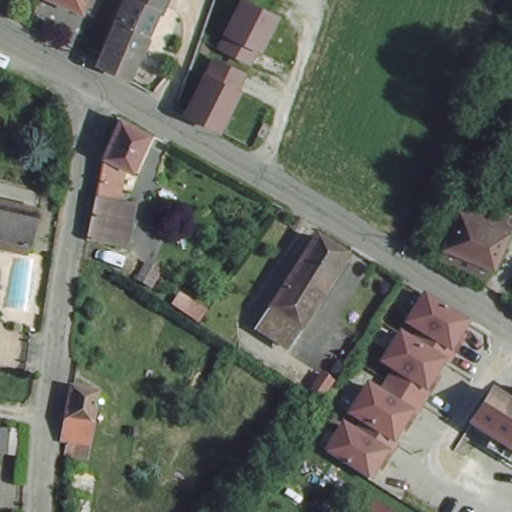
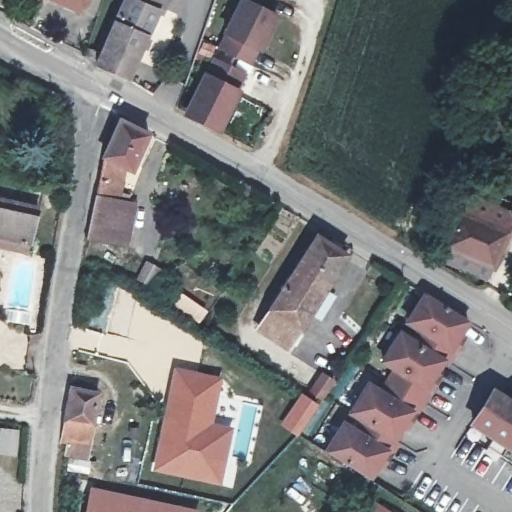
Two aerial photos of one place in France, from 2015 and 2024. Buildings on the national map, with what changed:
unchanged [(82,12),(52,0),(88,0),(82,12)]
unchanged [(162,7),(128,73),(95,60),(125,0),(169,0),(166,9),(162,7)]
unchanged [(217,42),(225,27),(222,27),(235,0),(253,0),(273,10),(256,44),(254,42),(246,57),(217,42)]
unchanged [(204,65),(205,66),(212,52),(225,59),(244,67),(235,84),(216,122),(184,104),(204,65)]
unchanged [(102,156),(120,120),(151,136),(135,174),(127,172),(123,200),(135,202),(128,245),(88,239),(102,156)]
unchanged [(439,260),(443,250),(440,249),(461,192),(512,211),(490,270),(487,268),(483,278),(439,260)]
unchanged [(23,209),(15,242),(13,251),(0,248),(0,203),(23,209)]
unchanged [(262,325),(318,237),(348,254),(291,345),(262,325)]
new [(178,290),(208,311),(198,325),(169,303),(178,290)]
unchanged [(470,321),(464,329),(471,333),(454,363),(447,358),(439,370),(447,375),(413,431),(405,427),(399,438),(406,443),(389,471),(382,465),(373,482),(325,452),(343,420),(359,430),(363,424),(349,413),(367,381),(384,392),(397,371),(382,362),(400,331),(416,341),(422,332),(406,322),(425,292),(470,321)]
new [(173,366),(222,377),(213,422),(233,427),(223,486),(152,472),(173,366)]
unchanged [(325,402),(312,393),(324,377),(337,386),(331,395),(325,402)]
unchanged [(492,387),(502,393),(512,399),(512,448),(473,422),(492,387)]
unchanged [(95,398),(86,449),(59,445),(67,393),(95,398)]
new [(201,509),(200,512),(84,512),(90,486),(201,509)]

